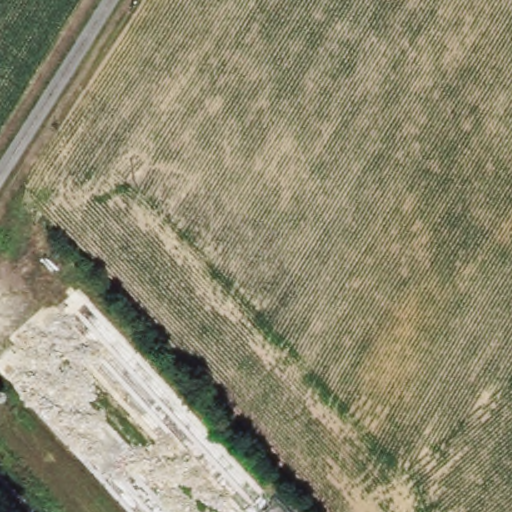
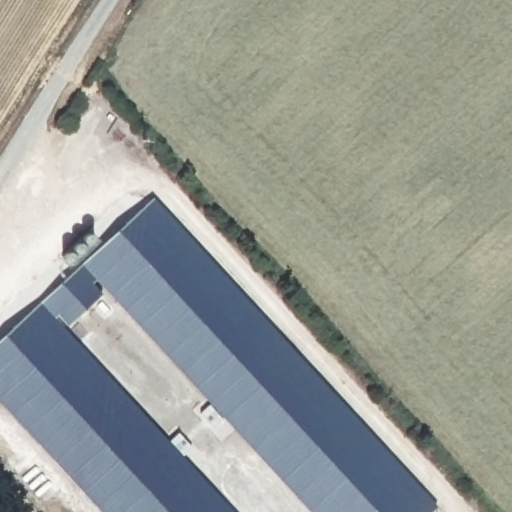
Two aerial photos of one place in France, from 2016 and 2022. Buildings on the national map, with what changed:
new [(312,512),(96,278),(91,283),(102,295),(70,325),(57,313),(54,318),(234,512),(101,512),(0,403),(0,340),(75,271),(70,267),(67,266),(64,261),(65,257),(86,235),(89,235),(94,238),(102,246),(153,199),(437,506),(431,512),(312,512)]
demolished [(265,495),(247,512),(217,512),(44,322),(78,290),(265,495)]
demolished [(188,512),(123,512),(0,378),(0,362),(27,337),(188,512)]

